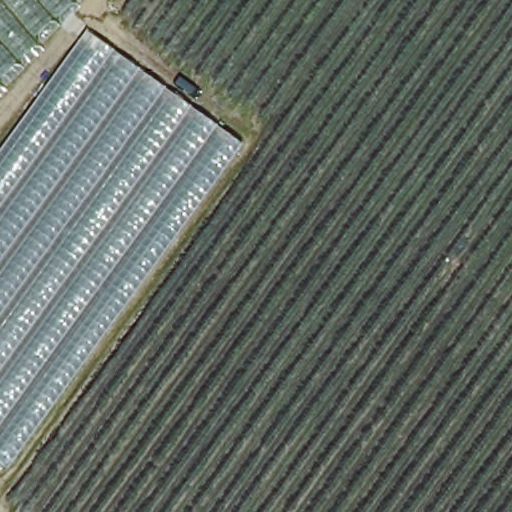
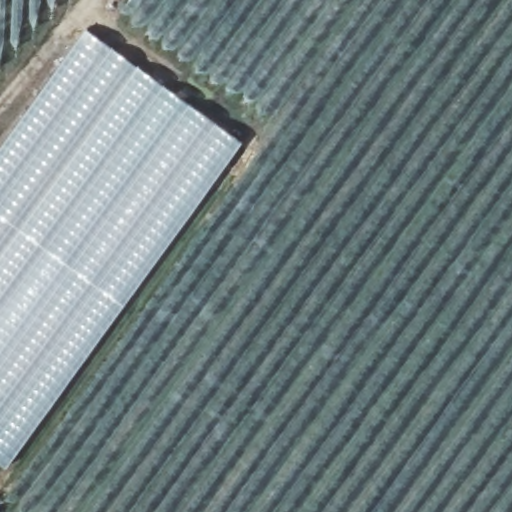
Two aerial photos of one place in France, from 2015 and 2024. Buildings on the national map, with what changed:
demolished [(0,0),(77,0),(0,77),(0,0)]
unchanged [(0,460),(0,152),(88,31),(246,146),(9,467),(0,460)]

